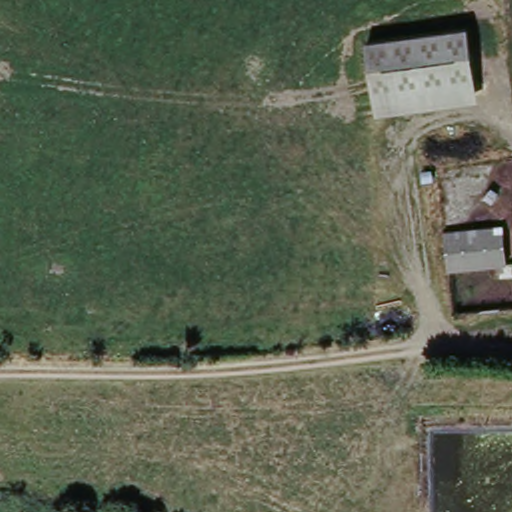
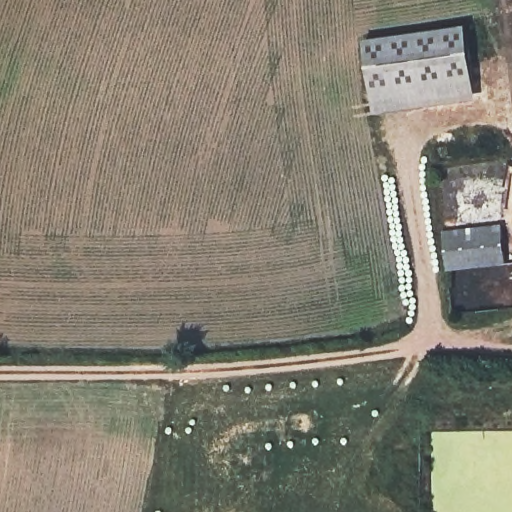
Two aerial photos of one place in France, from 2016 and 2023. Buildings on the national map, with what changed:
unchanged [(472,30),(482,110),(374,124),(365,45),(472,30)]
unchanged [(499,226),(507,266),(449,275),(442,235),(499,226)]

